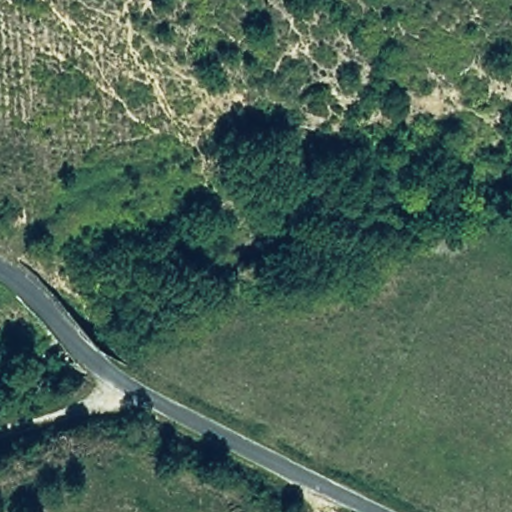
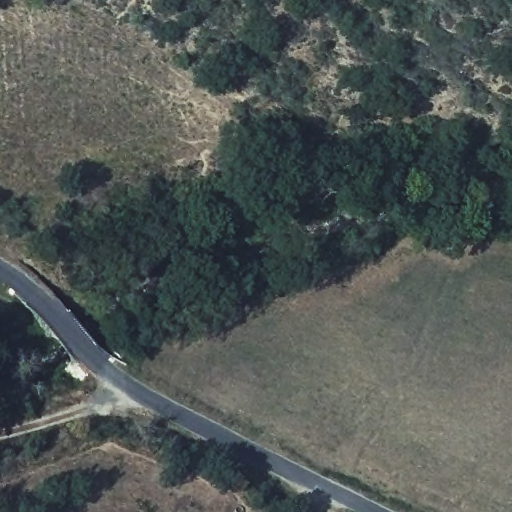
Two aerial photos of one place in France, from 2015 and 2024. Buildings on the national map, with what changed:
[]

